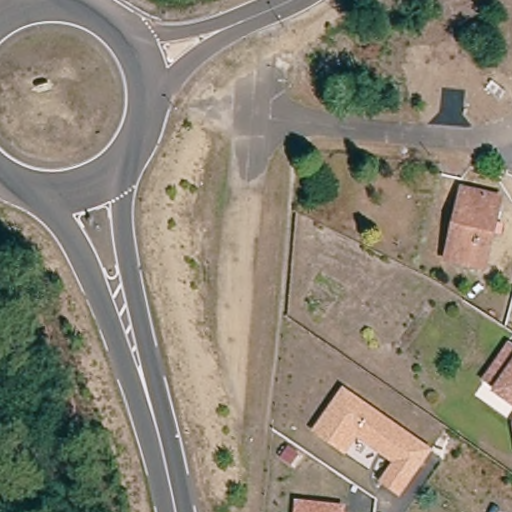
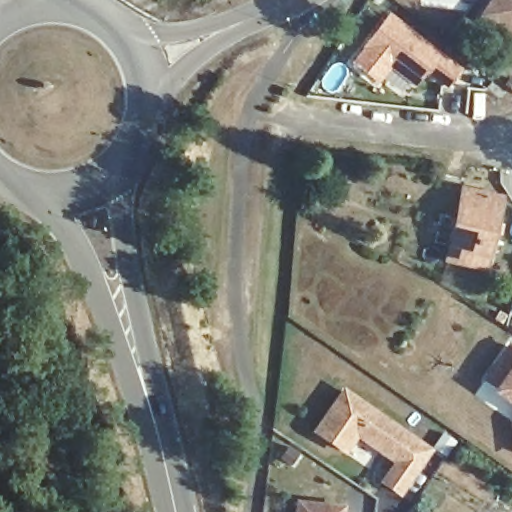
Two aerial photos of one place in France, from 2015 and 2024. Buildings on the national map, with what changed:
unchanged [(494,0),(512,0),(512,39),(481,17),(494,0)]
new [(414,87),(362,48),(390,12),(441,52),(414,87)]
unchanged [(483,275),(447,267),(462,197),(498,206),(483,275)]
unchanged [(485,398),(500,378),(488,370),(500,354),(512,362),(512,418),(485,398)]
unchanged [(418,440),(433,450),(403,493),(386,482),(400,462),(360,434),(348,451),(320,431),(348,391),(418,440)]
unchanged [(511,461),(506,430),(512,423),(512,461),(511,461)]
unchanged [(346,506),(346,512),(295,512),(296,497),(346,506)]

